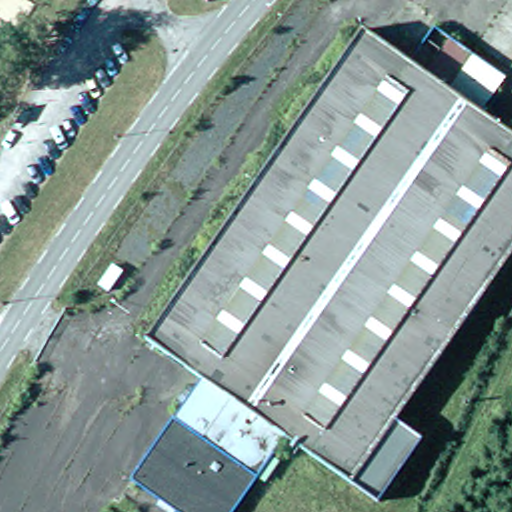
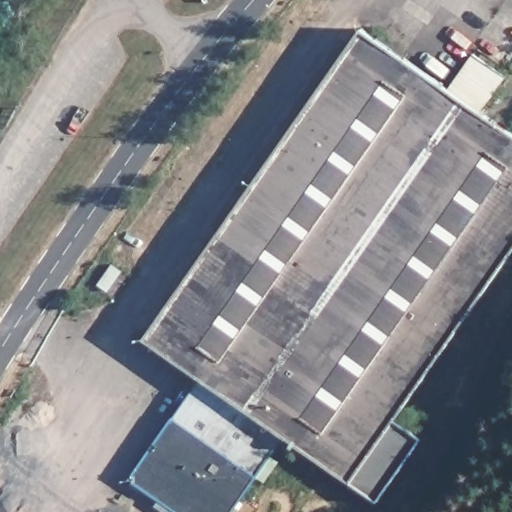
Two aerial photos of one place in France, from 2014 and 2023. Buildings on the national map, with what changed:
unchanged [(188,388),(197,375),(150,341),(367,32),(412,64),(436,30),(508,79),(484,114),(512,134),(512,261),(400,419),(427,439),(383,503),(286,435),(232,512),(149,512),(117,489),(179,401),(173,397),(183,384),(188,388)]

